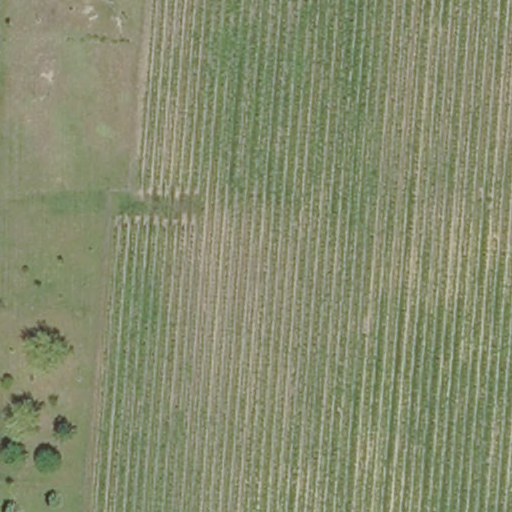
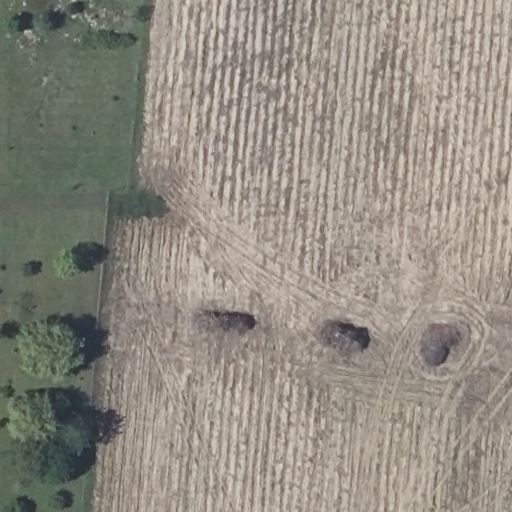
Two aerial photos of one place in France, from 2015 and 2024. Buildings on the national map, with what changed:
[]

